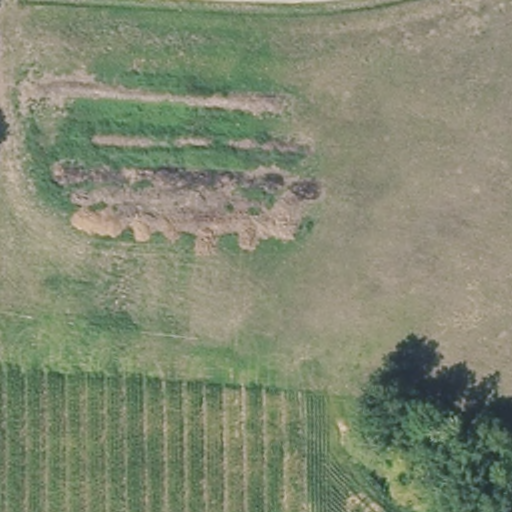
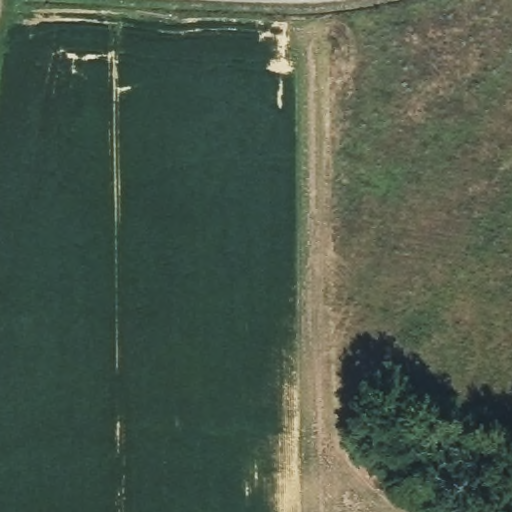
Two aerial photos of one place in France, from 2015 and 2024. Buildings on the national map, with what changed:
[]

